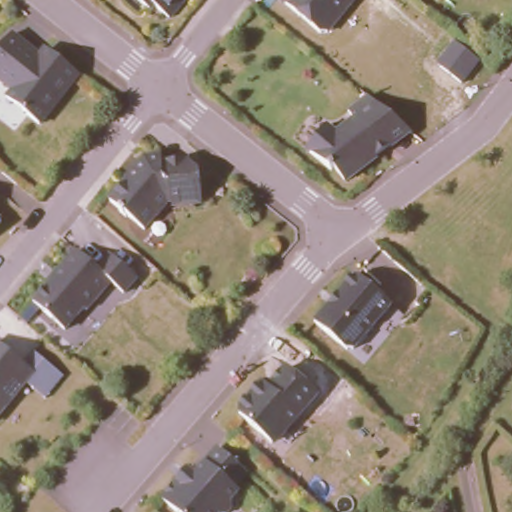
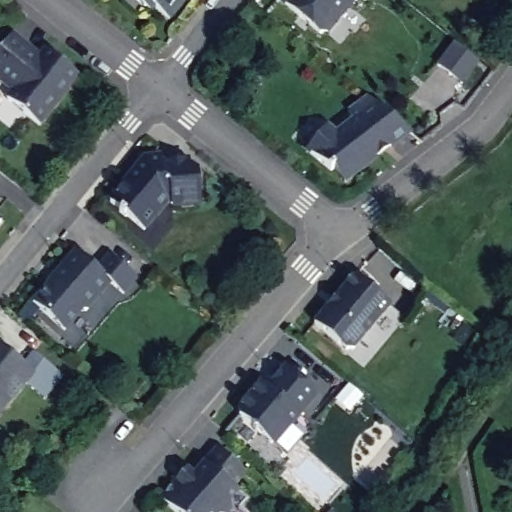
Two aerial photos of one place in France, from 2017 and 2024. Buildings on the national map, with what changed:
unchanged [(144,0),(183,0),(170,18),(144,0)]
unchanged [(349,0),(324,33),(289,0),(349,0)]
unchanged [(44,124),(7,95),(15,88),(0,73),(0,57),(22,30),(47,54),(50,51),(82,76),(44,124)]
unchanged [(349,182),(308,145),(332,124),(340,134),(372,99),(412,131),(349,182)]
unchanged [(114,197),(149,154),(199,163),(199,207),(167,205),(147,230),(114,197)]
unchanged [(0,224),(0,222),(1,223),(0,224)]
unchanged [(79,249),(97,268),(108,254),(137,278),(125,293),(111,280),(70,328),(34,299),(79,249)]
unchanged [(317,319),(359,272),(394,302),(350,349),(317,319)]
unchanged [(25,366),(35,354),(62,378),(45,399),(26,384),(0,415),(0,347),(25,366)]
unchanged [(237,411),(282,360),(322,394),(277,444),(237,411)]
unchanged [(165,499),(217,447),(250,474),(218,512),(184,512),(165,499)]

